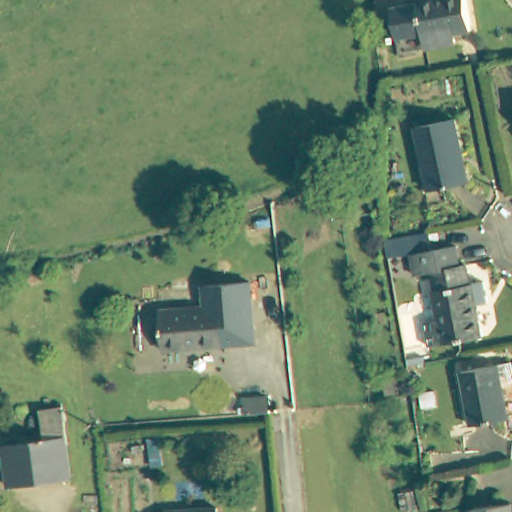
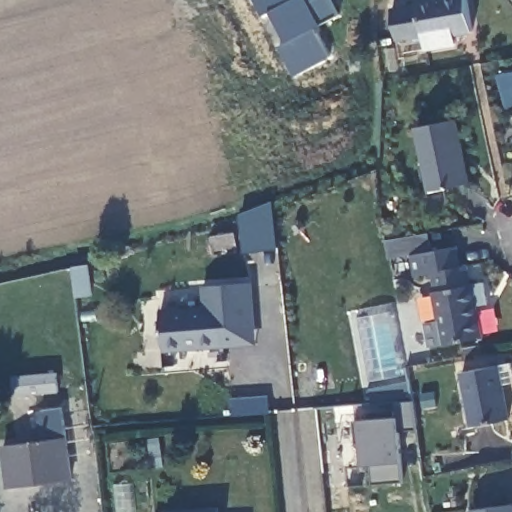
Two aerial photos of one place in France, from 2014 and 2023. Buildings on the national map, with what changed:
new [(314,25),(330,54),(294,72),(279,42),(286,39),(270,9),(263,13),(257,0),(334,0),(339,11),(314,25)]
unchanged [(417,0),(420,37),(396,41),(390,5),(414,0),(417,0)]
unchanged [(452,37),(453,47),(423,50),(422,41),(420,42),(417,0),(467,0),(470,36),(452,37)]
unchanged [(454,122),(468,187),(429,195),(415,132),(454,122)]
unchanged [(455,251),(458,271),(465,270),(468,290),(471,289),(479,342),(439,347),(431,295),(435,295),(432,276),(415,278),(411,257),(455,251)]
unchanged [(221,310),(204,311),(201,285),(252,281),(256,346),(224,349),(221,310)]
unchanged [(224,349),(164,355),(160,316),(221,310),(224,349)]
unchanged [(497,371),(507,426),(470,431),(461,376),(497,371)]
new [(391,401),(375,402),(373,388),(414,382),(416,394),(407,396),(408,398),(413,427),(395,430),(401,481),(370,484),(367,463),(361,464),(358,443),(352,443),(350,421),(392,416),(391,401)]
unchanged [(268,396),(269,411),(250,412),(249,397),(268,396)]
unchanged [(42,447),(38,416),(61,413),(71,482),(7,492),(1,453),(42,447)]
unchanged [(512,512),(470,512),(469,512),(511,505),(512,512)]
unchanged [(221,512),(185,512),(220,510),(221,512)]

